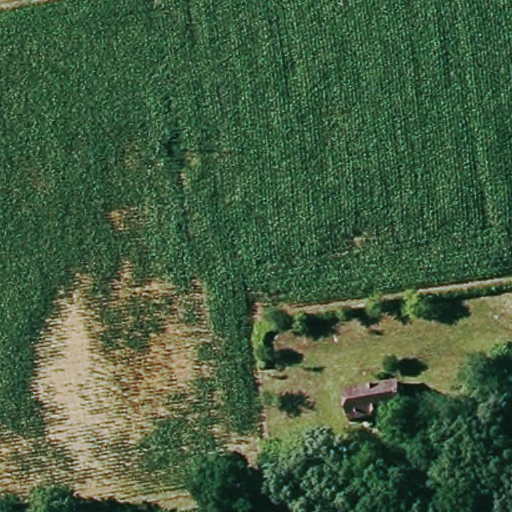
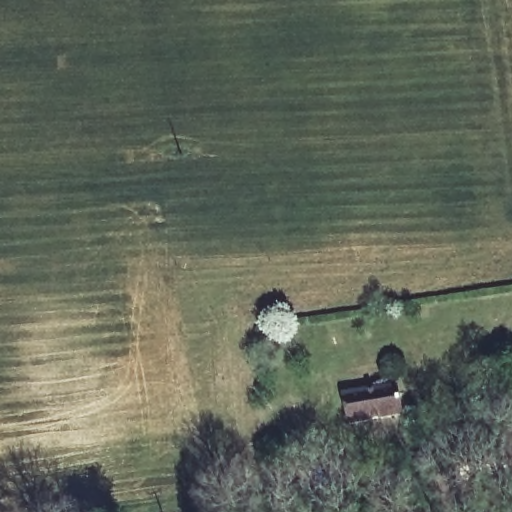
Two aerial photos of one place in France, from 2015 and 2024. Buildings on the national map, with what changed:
unchanged [(338,390),(397,381),(401,410),(343,419),(338,390)]

